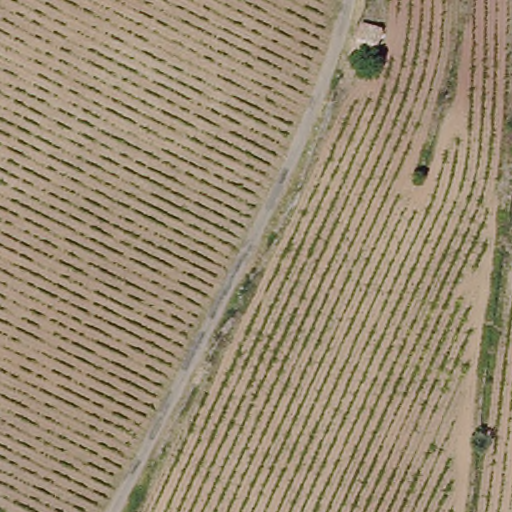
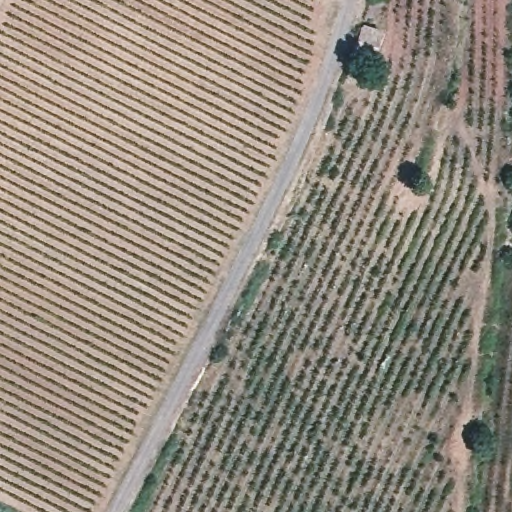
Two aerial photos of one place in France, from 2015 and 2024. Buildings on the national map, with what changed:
unchanged [(353,25),(377,36),(370,60),(345,48),(353,25)]

